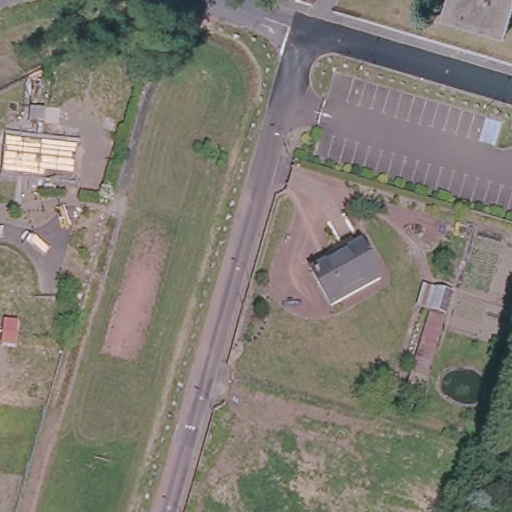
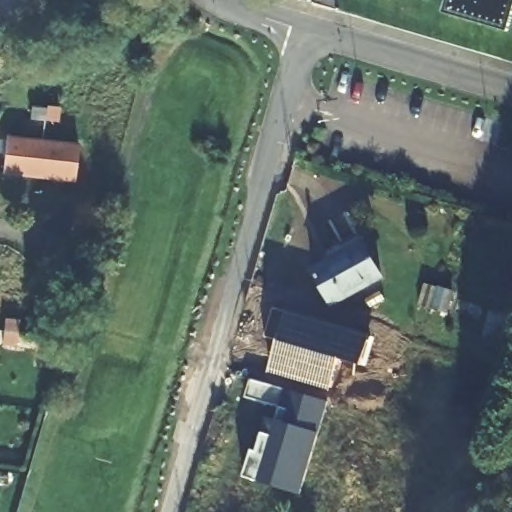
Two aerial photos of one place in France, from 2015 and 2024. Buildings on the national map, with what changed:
unchanged [(442,15),(448,0),(512,0),(512,18),(507,35),(442,15)]
unchanged [(33,176),(0,173),(0,152),(1,137),(37,141),(33,176)]
unchanged [(37,141),(73,145),(70,180),(33,176),(37,141)]
unchanged [(339,251),(356,241),(382,284),(333,313),(313,280),(345,260),(339,251)]
new [(361,363),(340,358),(331,392),(268,373),(277,338),(265,336),(273,308),(291,313),(372,335),(361,363)]
new [(242,477),(250,450),(255,450),(266,416),(274,419),(278,407),(245,397),(250,379),(329,401),(300,495),(242,477)]
demolished [(279,470),(274,460),(291,450),(316,492),(284,512),(262,512),(248,488),(279,470)]

